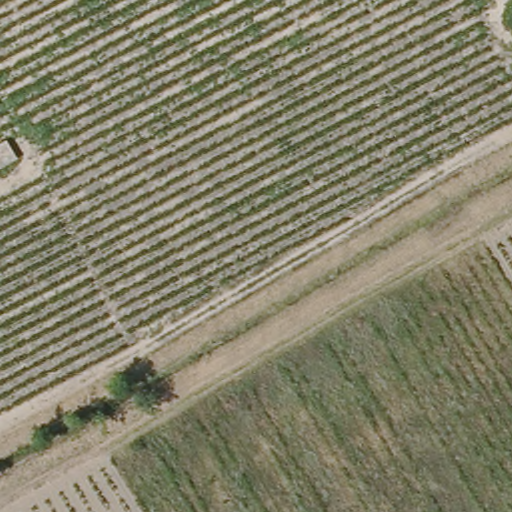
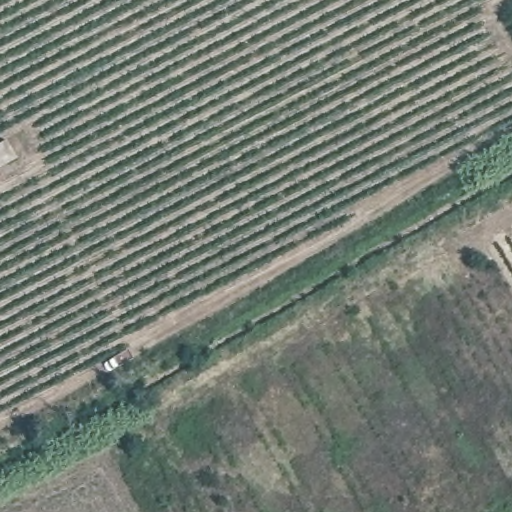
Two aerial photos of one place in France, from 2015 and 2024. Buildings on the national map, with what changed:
unchanged [(24,155),(0,167),(0,145),(15,138),(24,155)]

